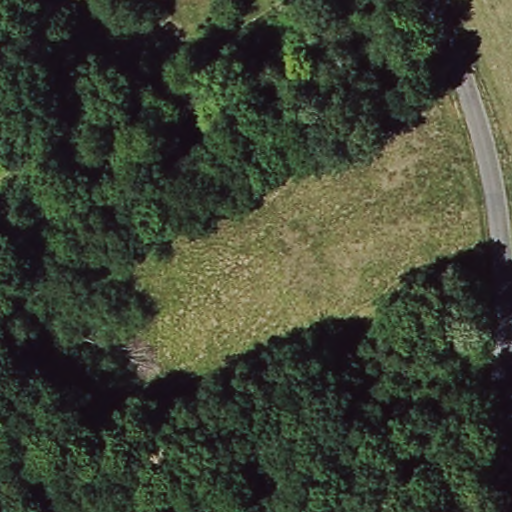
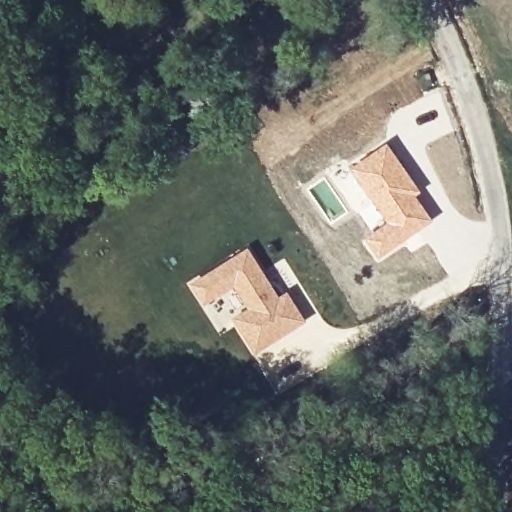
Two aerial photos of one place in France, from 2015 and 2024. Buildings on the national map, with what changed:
new [(387,142),(422,192),(417,197),(433,221),(377,262),(361,239),(385,222),(348,169),(387,142)]
new [(248,246),(280,297),(287,291),(307,322),(254,357),(228,317),(243,307),(231,291),(203,309),(185,283),(248,246)]

